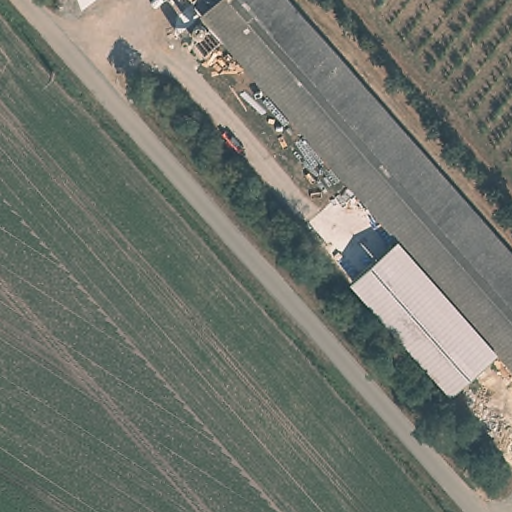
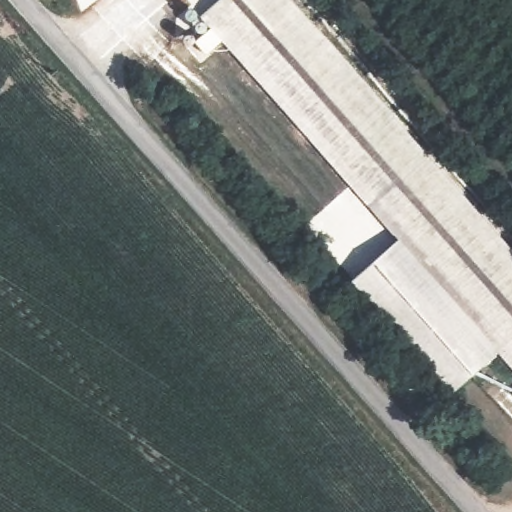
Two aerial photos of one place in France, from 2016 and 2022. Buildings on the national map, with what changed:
unchanged [(201,9),(212,0),(295,0),(309,16),(204,12),(201,9)]
unchanged [(496,229),(438,279),(226,35),(209,51),(196,37),(213,21),(204,12),(309,16),(496,229)]
unchanged [(496,229),(512,247),(512,363),(438,279),(496,229)]
unchanged [(446,394),(349,280),(401,235),(438,279),(499,348),(446,394)]

